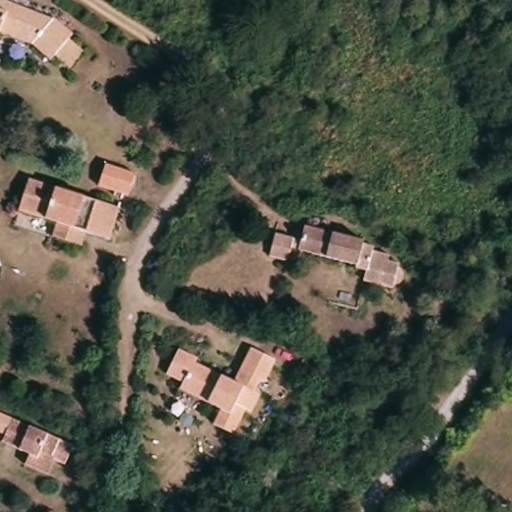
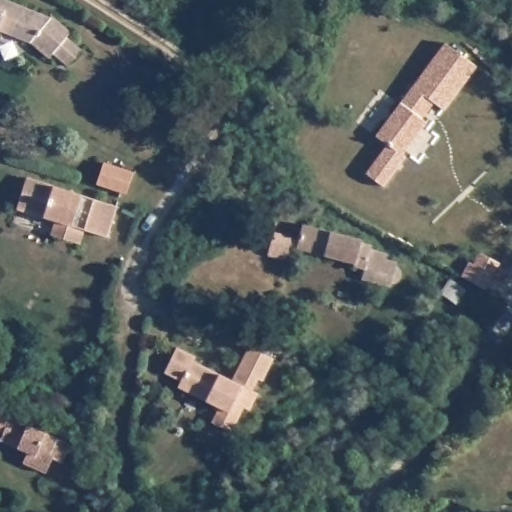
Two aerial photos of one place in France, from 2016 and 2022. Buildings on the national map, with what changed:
unchanged [(51,15),(70,33),(66,37),(82,50),(68,66),(53,53),(49,58),(29,41),(0,29),(0,0),(7,0),(49,17),(51,15)]
new [(388,145),(376,136),(446,43),(477,66),(444,110),(434,103),(422,119),(426,123),(403,155),(406,158),(384,187),(367,174),(388,145)]
unchanged [(127,196),(98,186),(106,163),(135,173),(127,196)]
unchanged [(66,240),(50,234),(54,220),(16,208),(26,177),(34,179),(117,206),(107,237),(84,229),(79,244),(66,240)]
unchanged [(354,264),(289,247),(285,259),(267,255),(273,232),(292,237),(291,238),(299,239),(303,224),(362,240),(361,243),(372,246),(371,249),(387,254),(385,259),(397,262),(396,265),(397,266),(398,267),(399,268),(399,269),(401,269),(401,271),(401,272),(402,273),(402,274),(402,275),(401,277),(401,278),(401,279),(399,280),(399,281),(398,282),(397,283),(396,283),(394,284),(393,284),(391,284),(390,287),(361,279),(364,269),(353,267),(354,264)]
new [(469,263),(474,265),(480,253),(500,263),(486,290),(462,277),(469,263)]
unchanged [(194,356),(191,360),(230,379),(247,344),(271,357),(259,379),(255,377),(250,389),(255,392),(247,409),(242,406),(229,431),(209,421),(217,406),(176,386),(179,379),(163,371),(175,347),(194,356)]
unchanged [(63,462),(52,458),(45,473),(23,463),(27,452),(0,440),(3,433),(0,432),(0,413),(70,444),(63,462)]

